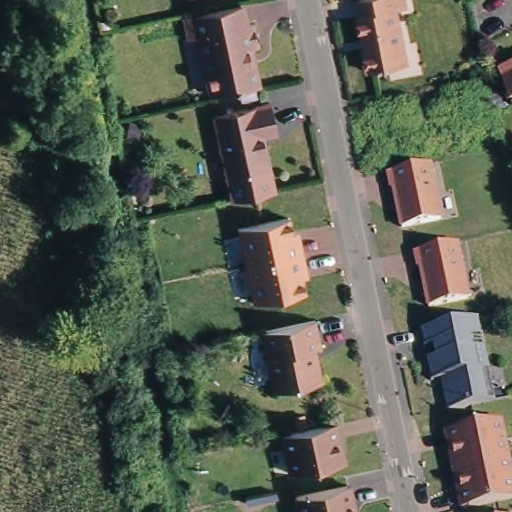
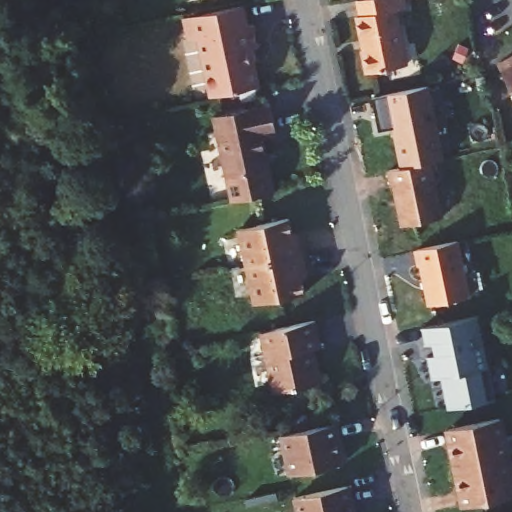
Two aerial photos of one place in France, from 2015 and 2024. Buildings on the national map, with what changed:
unchanged [(410,7),(400,10),(411,65),(372,72),(367,50),(368,50),(362,16),(365,15),(362,0),(408,0),(410,7)]
unchanged [(245,6),(250,27),(257,25),(262,48),(252,50),(255,64),(257,63),(262,87),(220,96),(216,97),(203,38),(195,40),(190,17),(245,6)]
unchanged [(512,57),(512,92),(497,65),(512,57)]
new [(428,86),(443,159),(402,168),(393,127),(378,131),(371,97),(428,86)]
unchanged [(232,192),(227,169),(213,107),(270,94),(276,124),(262,127),(268,160),(273,182),(232,192)]
unchanged [(417,165),(430,162),(442,217),(402,226),(395,186),(392,187),(388,171),(417,165)]
unchanged [(290,217),(293,234),(300,232),(310,277),(304,278),(307,292),(257,302),(240,227),(290,217)]
unchanged [(433,247),(457,242),(460,260),(468,297),(429,305),(422,267),(421,266),(418,266),(415,250),(433,247)]
unchanged [(497,367),(489,369),(495,401),(457,409),(451,377),(442,379),(437,356),(447,353),(445,342),(435,345),(431,327),(486,316),(497,367)]
unchanged [(320,326),(325,352),(317,354),(325,388),(279,398),(265,337),(320,326)]
unchanged [(453,460),(457,455),(455,445),(450,446),(447,430),(500,418),(507,457),(455,468),(453,460)]
unchanged [(337,440),(332,441),(334,452),(340,454),(342,463),(289,474),(280,436),(333,424),(337,440)]
unchanged [(512,497),(462,507),(460,491),(465,490),(462,480),(457,477),(455,468),(507,457),(512,479),(512,497)]
unchanged [(352,492),(356,507),(351,508),(352,512),(302,512),(300,502),(352,492)]

